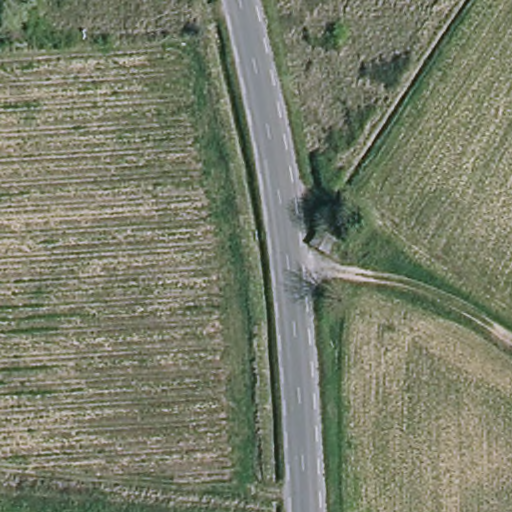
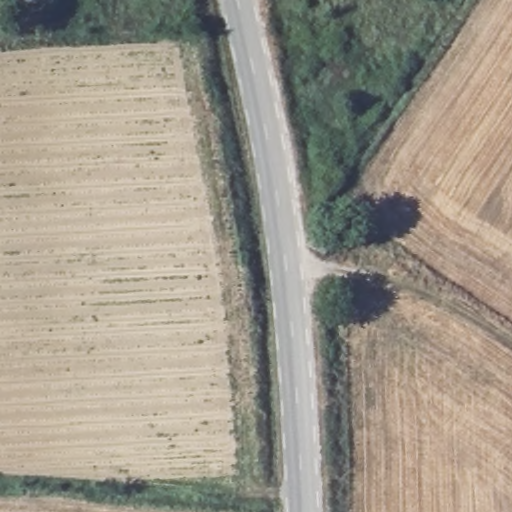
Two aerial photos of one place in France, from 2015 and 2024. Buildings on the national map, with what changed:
unchanged [(311,240),(320,223),(323,225),(337,233),(327,250),(311,240)]

